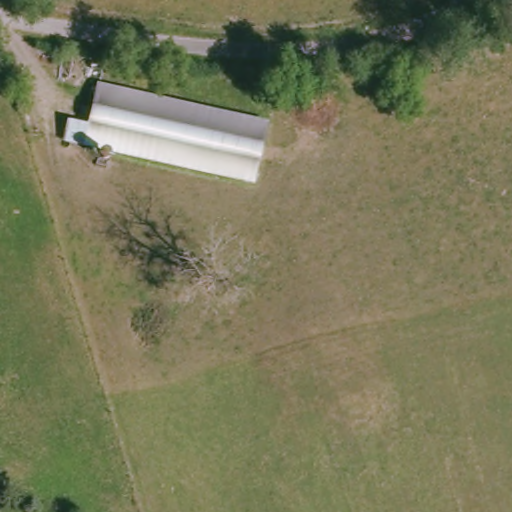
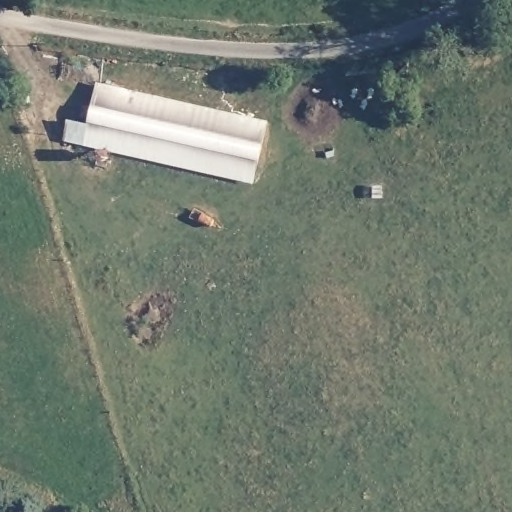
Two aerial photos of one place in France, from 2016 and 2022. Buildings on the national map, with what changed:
unchanged [(270,112),(257,171),(68,128),(73,109),(92,113),(102,73),(270,112)]

